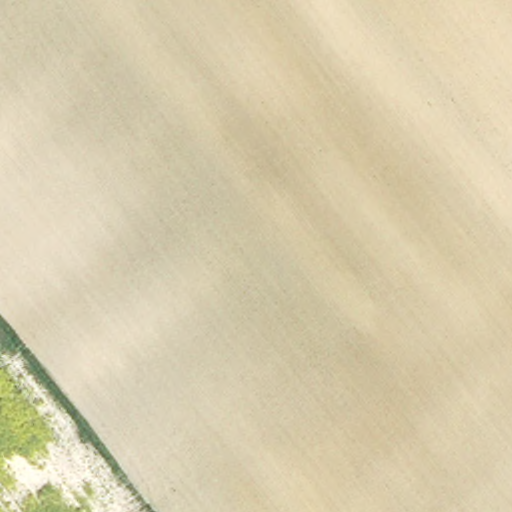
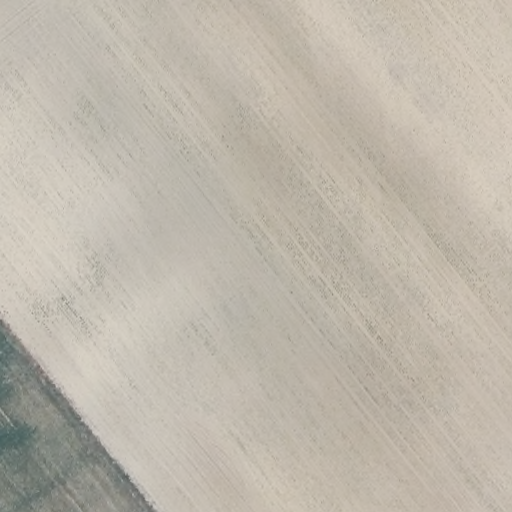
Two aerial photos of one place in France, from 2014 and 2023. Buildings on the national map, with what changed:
[]

